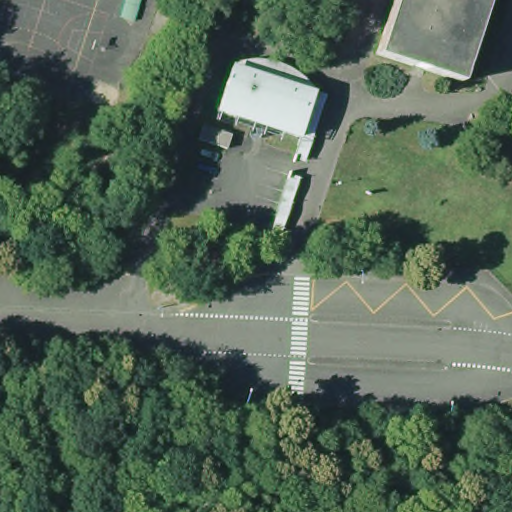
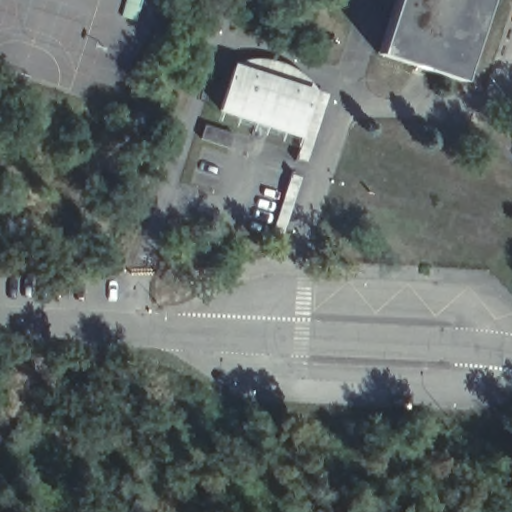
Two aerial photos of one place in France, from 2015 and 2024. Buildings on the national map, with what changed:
unchanged [(380,58),(399,0),(493,0),(465,83),(380,58)]
unchanged [(237,67),(328,102),(308,149),(217,119),(237,67)]

